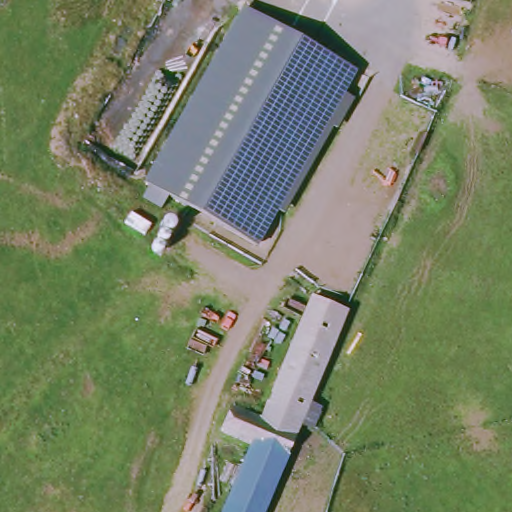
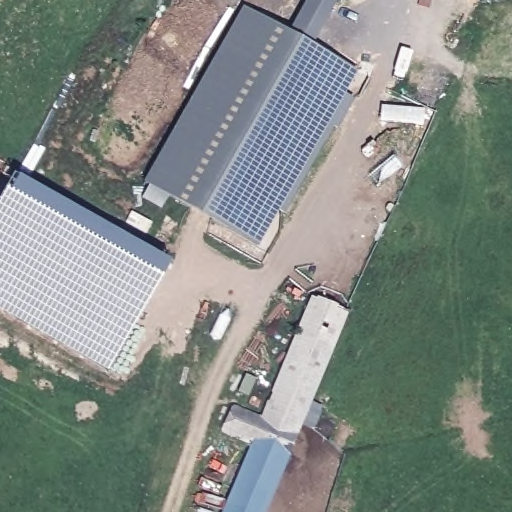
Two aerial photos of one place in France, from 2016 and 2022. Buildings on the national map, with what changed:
new [(336,0),(314,46),(290,32),(306,0),(336,0)]
unchanged [(357,71),(258,246),(147,182),(247,7),(357,71)]
new [(0,201),(14,176),(150,252),(163,222),(169,219),(173,220),(174,222),(175,224),(176,227),(175,230),(160,258),(170,263),(108,371),(0,311),(0,201)]
unchanged [(355,321),(315,411),(327,416),(317,439),(305,433),(289,468),(250,453),(222,441),(237,411),(266,424),(319,301),(355,321)]
unchanged [(289,468),(272,512),(227,512),(250,453),(289,468)]

